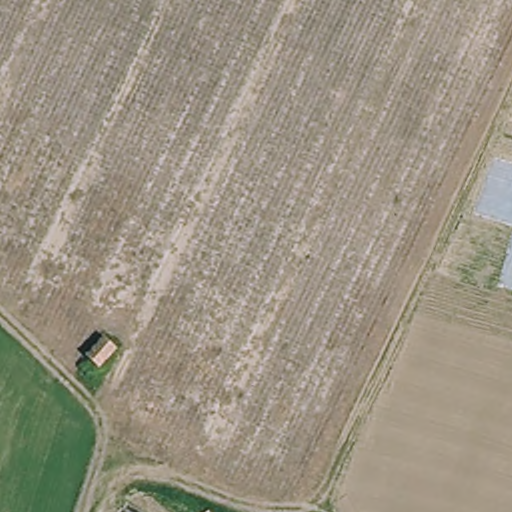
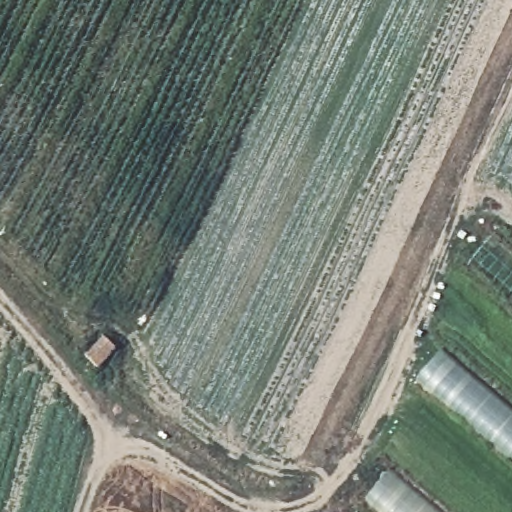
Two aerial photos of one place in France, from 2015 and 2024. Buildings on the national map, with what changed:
new [(512,248),(512,303),(470,266),(497,234),(512,248)]
unchanged [(86,359),(104,339),(117,351),(97,371),(86,359)]
new [(512,408),(512,463),(416,382),(444,351),(512,408)]
new [(365,501),(392,468),(444,512),(378,512),(365,501)]

